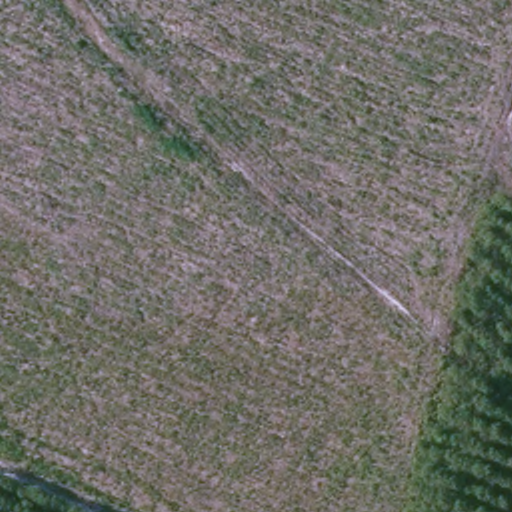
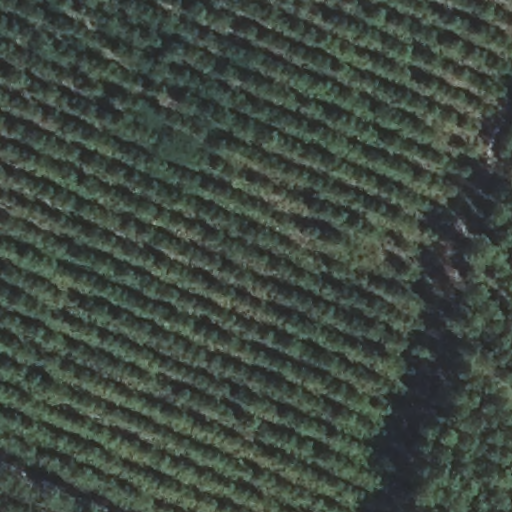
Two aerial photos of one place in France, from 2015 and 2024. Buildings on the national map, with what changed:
[]

